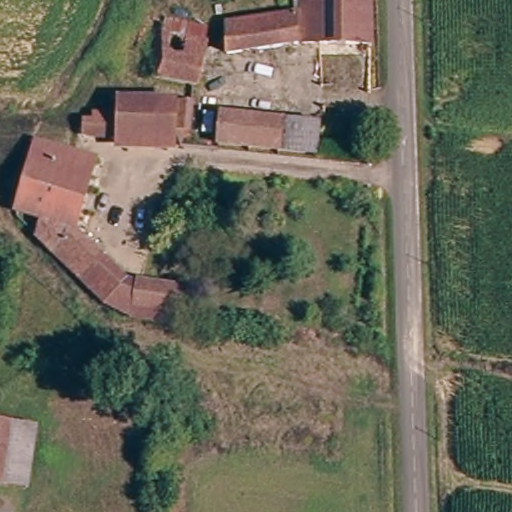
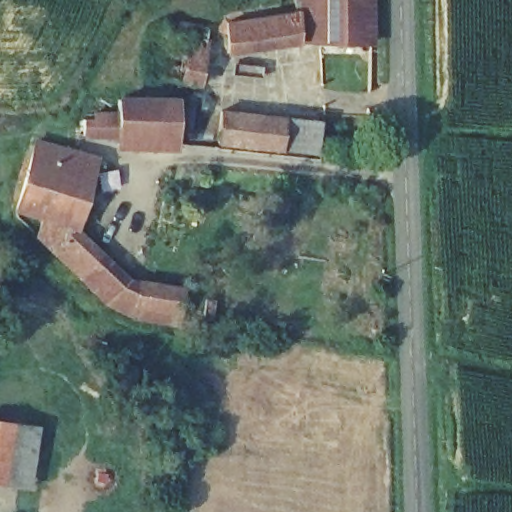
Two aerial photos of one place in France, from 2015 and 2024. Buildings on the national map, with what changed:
unchanged [(298,40),(298,0),(371,0),(372,41),(298,40)]
unchanged [(293,11),(293,41),(225,39),(225,36),(225,11),(293,11)]
unchanged [(206,36),(196,81),(152,73),(160,26),(206,36)]
unchanged [(172,153),(84,143),(85,126),(97,128),(97,120),(117,122),(118,111),(173,117),(187,119),(186,144),(174,143),(173,148),(172,153)]
unchanged [(322,121),(320,152),(222,141),(226,111),(322,121)]
unchanged [(42,145),(97,168),(68,238),(120,289),(176,295),(173,319),(112,310),(31,235),(41,217),(15,209),(42,145)]
unchanged [(3,483),(0,483),(0,420),(11,422),(3,483)]
unchanged [(38,425),(31,487),(3,483),(11,422),(38,425)]

